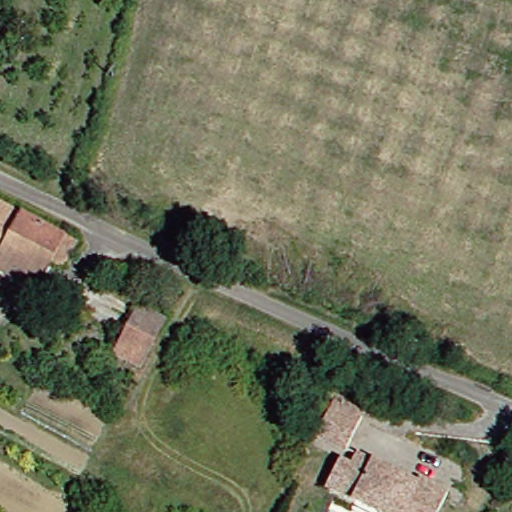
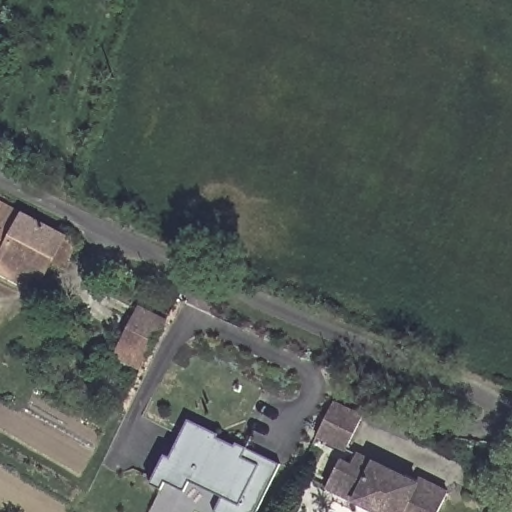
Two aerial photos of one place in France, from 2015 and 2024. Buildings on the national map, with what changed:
unchanged [(37,264),(25,259),(18,275),(0,265),(0,199),(56,221),(59,223),(72,228),(66,243),(62,251),(57,249),(48,246),(42,261),(37,264)]
unchanged [(140,301),(165,311),(140,361),(116,349),(140,301)]
unchanged [(334,394),(363,408),(347,441),(318,428),(334,394)]
new [(162,457),(170,460),(187,422),(216,433),(215,438),(234,447),(236,445),(245,450),(278,465),(254,512),(216,512),(223,498),(188,480),(182,491),(165,483),(161,488),(150,482),(162,457)]
unchanged [(443,488),(432,512),(380,512),(322,484),(335,457),(346,462),(352,450),(411,479),(414,475),(443,488)]

